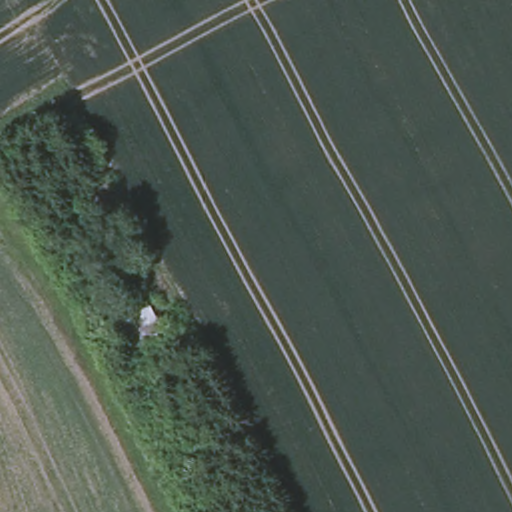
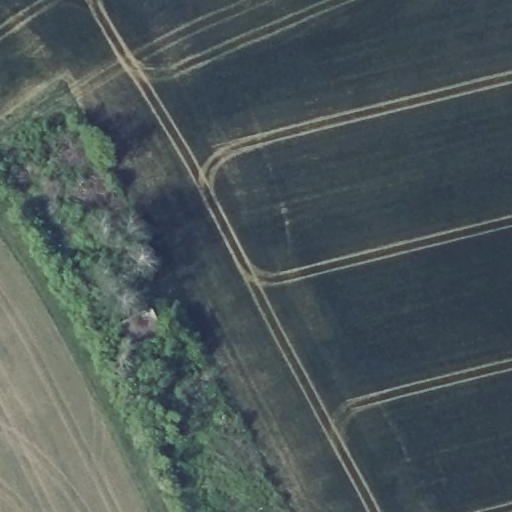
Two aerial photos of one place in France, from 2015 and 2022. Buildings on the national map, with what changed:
unchanged [(175,351),(136,370),(112,327),(153,307),(175,351)]

